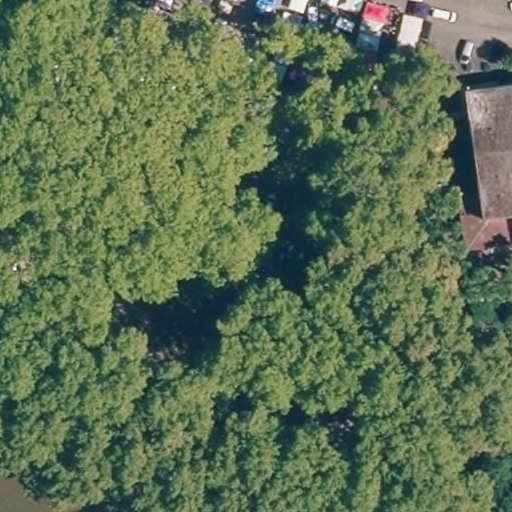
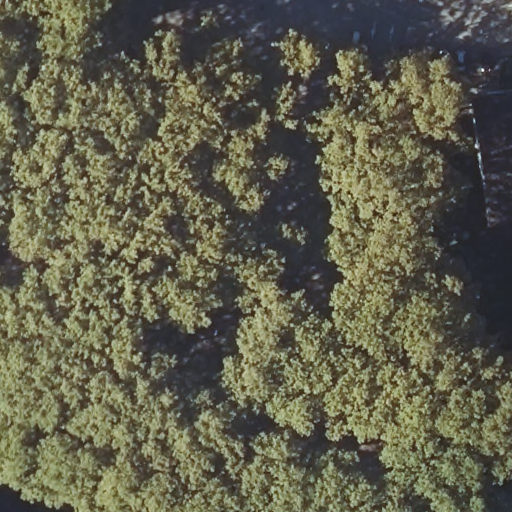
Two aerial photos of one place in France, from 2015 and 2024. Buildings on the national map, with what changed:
unchanged [(456,201),(481,198),(477,163),(471,116),(468,91),(483,89),(512,85),(512,247),(464,254),(456,201)]
unchanged [(460,98),(455,117),(435,112),(439,93),(460,98)]
unchanged [(512,312),(512,326),(507,314),(512,312)]

